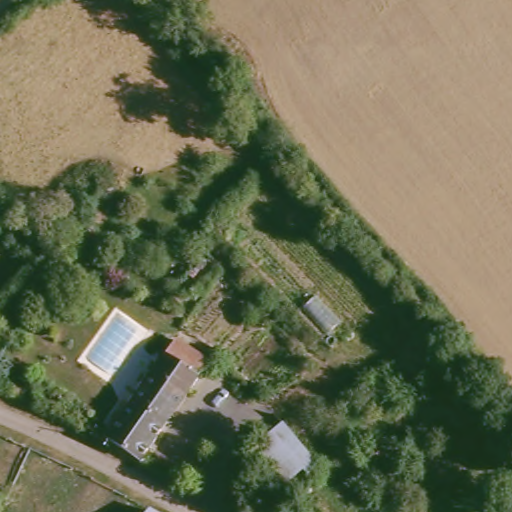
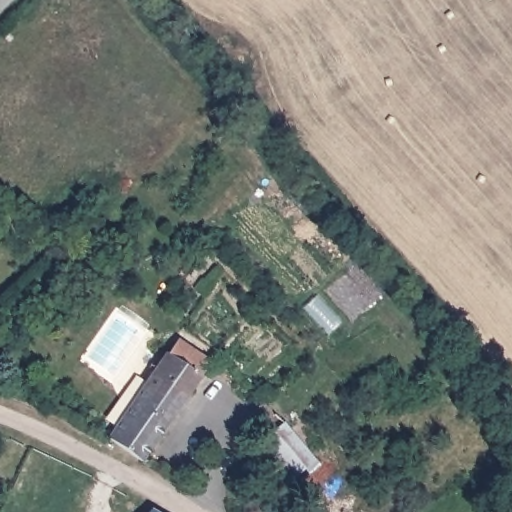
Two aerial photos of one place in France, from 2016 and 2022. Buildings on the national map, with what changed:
unchanged [(104,438),(176,338),(206,362),(139,461),(109,442),(104,438)]
unchanged [(313,458),(278,488),(246,449),(280,422),(313,458)]

